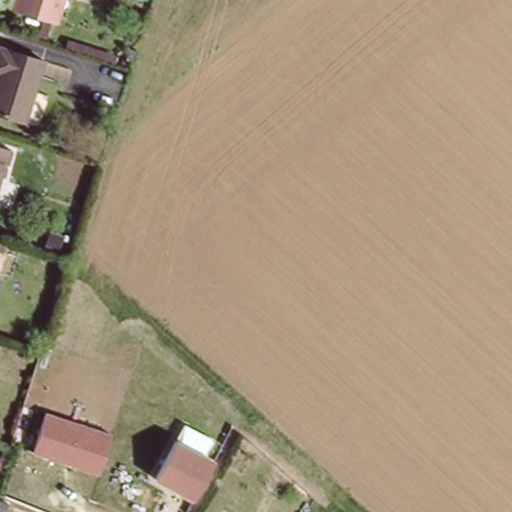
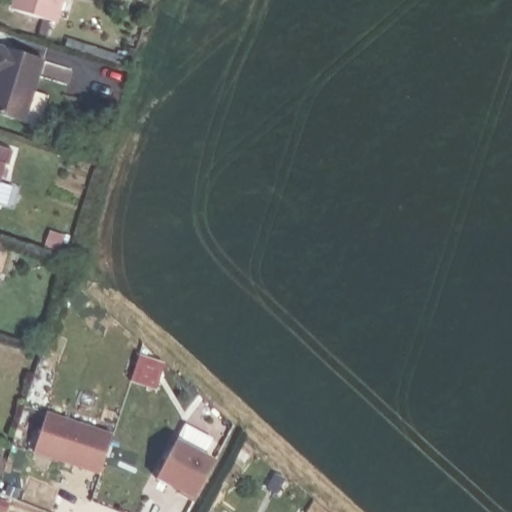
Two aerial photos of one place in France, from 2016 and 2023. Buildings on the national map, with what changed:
unchanged [(59,0),(53,21),(11,7),(13,0),(59,0)]
unchanged [(2,74),(0,73),(0,45),(46,59),(27,120),(0,112),(0,81),(2,74)]
unchanged [(9,149),(4,166),(0,164),(0,146),(9,149)]
unchanged [(33,453),(45,413),(112,435),(98,476),(33,453)]
unchanged [(155,481),(185,424),(210,438),(202,453),(215,460),(193,502),(155,481)]

